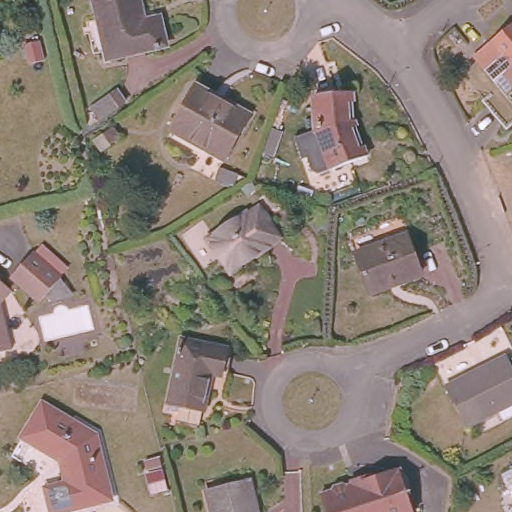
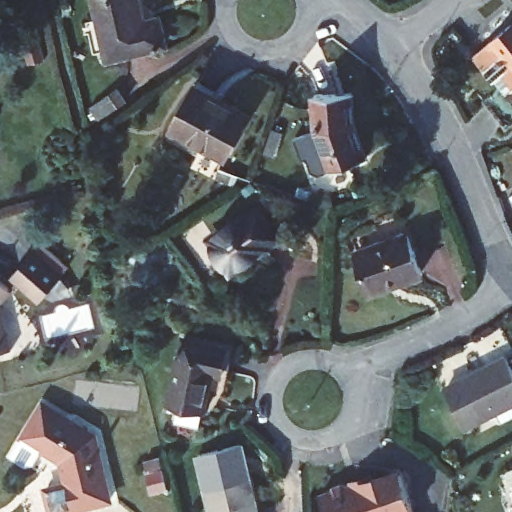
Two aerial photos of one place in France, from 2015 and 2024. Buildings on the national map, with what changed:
unchanged [(163,49),(106,63),(92,0),(136,0),(142,25),(157,22),(163,49)]
unchanged [(512,89),(502,100),(468,57),(512,20),(512,89)]
unchanged [(248,114),(223,159),(169,128),(193,85),(248,114)]
unchanged [(369,153),(339,163),(321,170),(314,166),(309,153),(304,155),(297,132),(326,123),(323,89),(345,87),(356,86),(356,92),(358,118),(369,153)]
unchanged [(124,102),(96,120),(88,106),(115,88),(124,102)]
unchanged [(290,126),(282,151),(274,148),(279,133),(282,123),(290,126)]
unchanged [(112,126),(118,136),(98,151),(91,140),(112,126)]
unchanged [(237,174),(232,186),(213,178),(218,166),(237,174)]
unchanged [(276,232),(231,266),(211,240),(255,206),(276,232)]
unchanged [(420,275),(369,293),(354,253),(405,234),(420,275)]
unchanged [(8,273),(29,248),(58,272),(36,297),(8,273)]
unchanged [(1,274),(0,275),(0,272),(1,274)]
unchanged [(9,287),(0,298),(0,279),(9,287)]
unchanged [(10,348),(0,350),(0,306),(10,348)]
unchanged [(224,348),(221,373),(209,372),(198,425),(174,419),(175,412),(164,409),(179,339),(224,348)]
unchanged [(439,381),(503,351),(512,371),(512,404),(495,413),(491,403),(458,419),(439,381)]
unchanged [(120,501),(118,501),(80,511),(80,502),(59,507),(53,483),(73,478),(67,455),(28,431),(46,398),(98,428),(115,493),(116,493),(120,501)]
new [(198,457),(239,447),(248,477),(206,488),(198,457)]
unchanged [(356,482),(354,478),(371,473),(373,479),(401,470),(415,511),(412,512),(328,512),(322,492),(356,482)]
unchanged [(211,512),(206,488),(248,477),(257,512),(211,512)]

